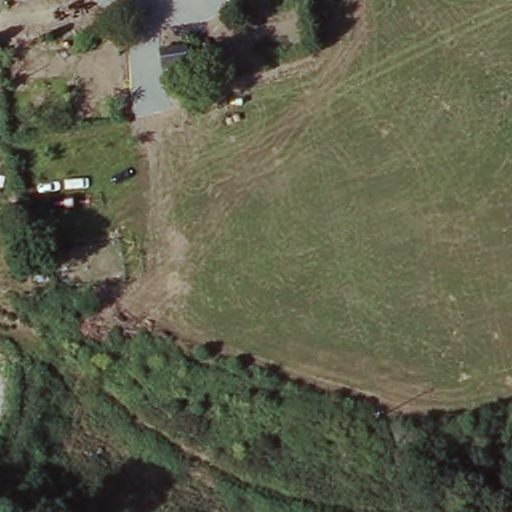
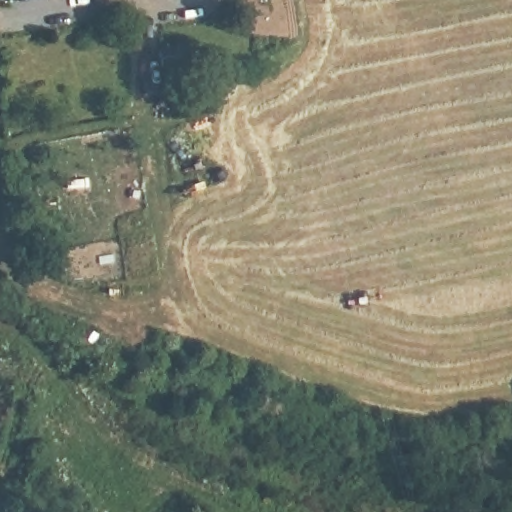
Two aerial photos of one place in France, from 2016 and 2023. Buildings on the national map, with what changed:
unchanged [(156,49),(181,44),(185,45),(193,46),(197,58),(186,60),(159,66),(156,49)]

